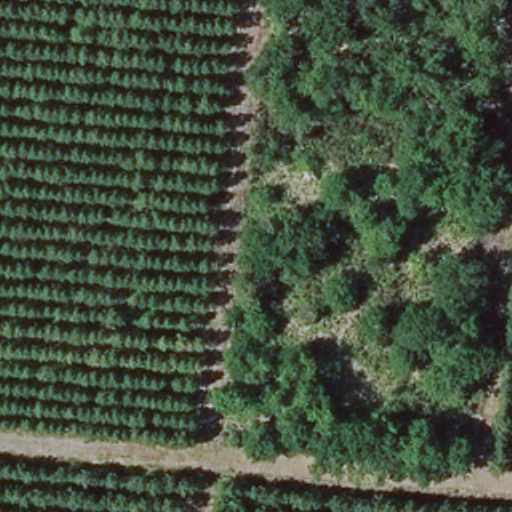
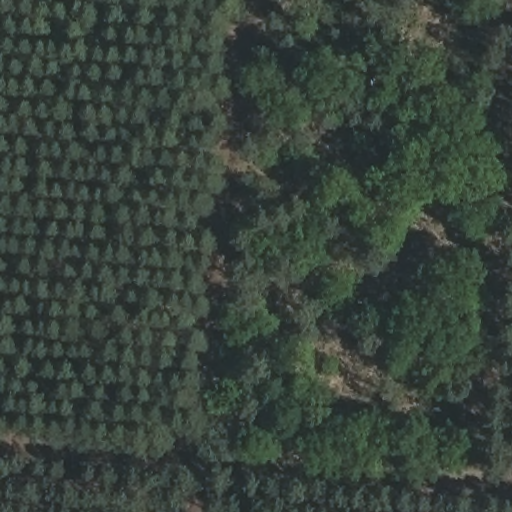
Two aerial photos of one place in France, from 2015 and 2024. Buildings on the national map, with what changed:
[]

